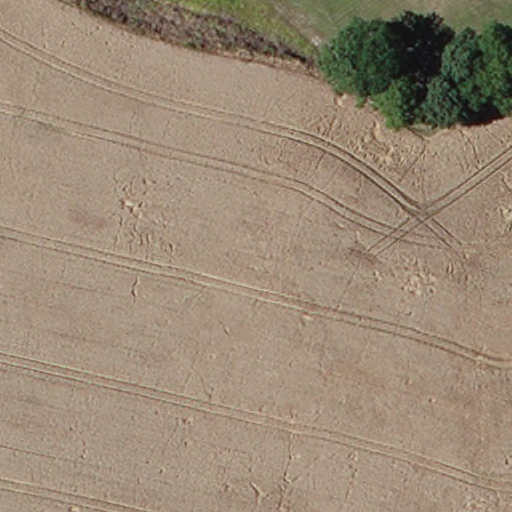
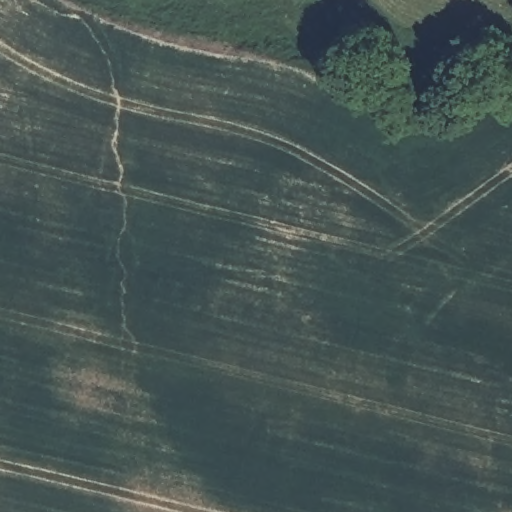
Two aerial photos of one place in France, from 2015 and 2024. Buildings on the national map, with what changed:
[]

